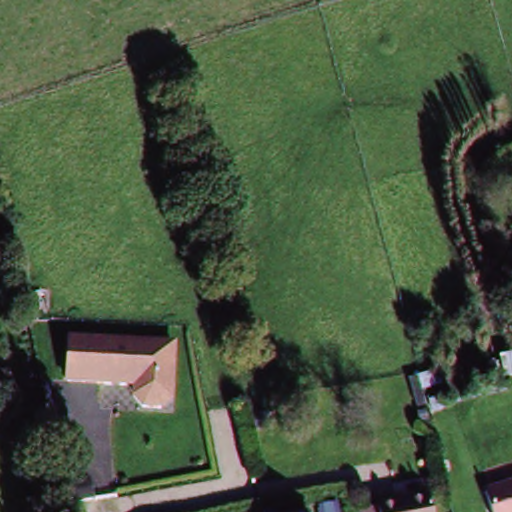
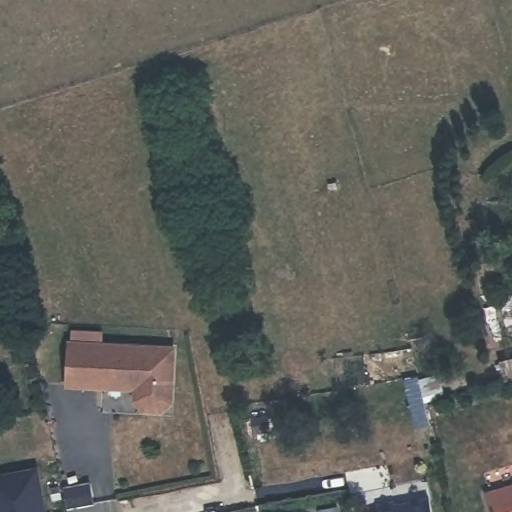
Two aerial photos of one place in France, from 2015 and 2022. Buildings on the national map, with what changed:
unchanged [(180,402),(170,412),(148,412),(140,401),(139,390),(71,385),(74,338),(182,344),(180,402)]
unchanged [(512,343),(512,359),(499,362),(495,346),(512,343)]
demolished [(94,466),(97,485),(70,489),(67,471),(94,466)]
new [(45,512),(0,512),(0,475),(38,468),(45,512)]
new [(91,481),(94,499),(66,503),(64,485),(91,481)]
unchanged [(512,484),(512,512),(495,512),(488,491),(512,484)]
unchanged [(387,508),(386,500),(404,497),(406,502),(436,496),(438,512),(372,512),(387,508)]

